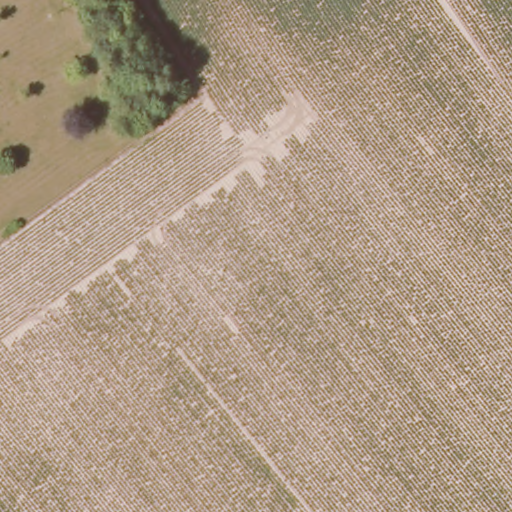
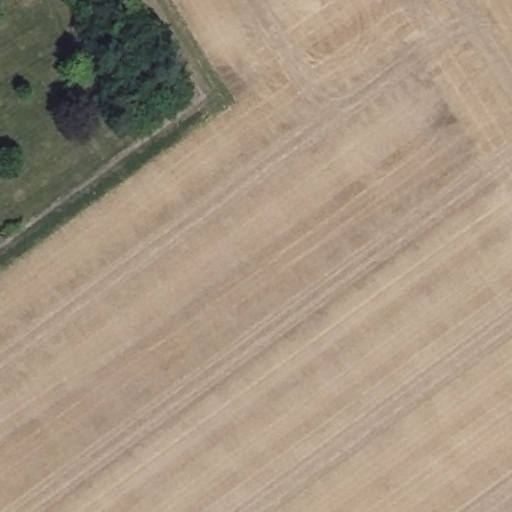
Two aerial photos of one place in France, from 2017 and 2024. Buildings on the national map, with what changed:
[]

